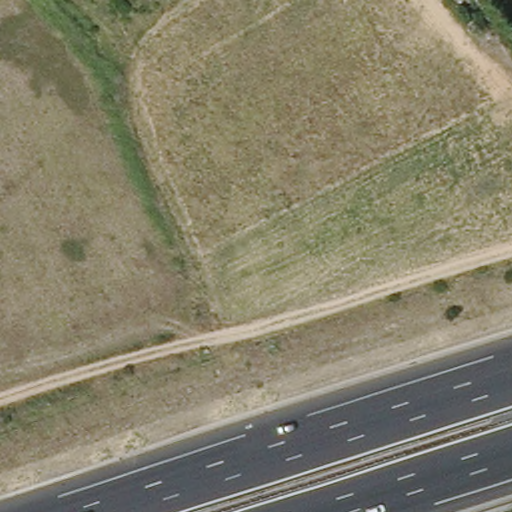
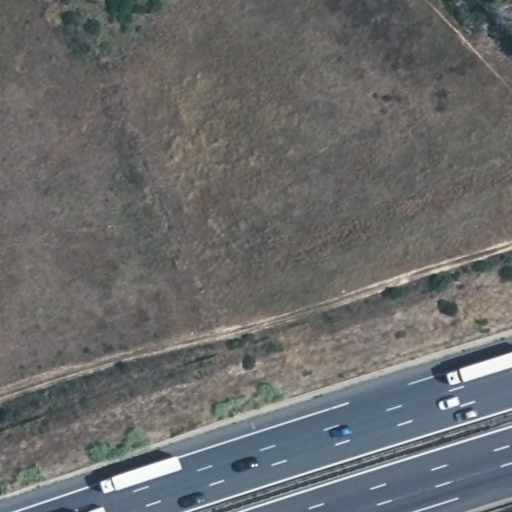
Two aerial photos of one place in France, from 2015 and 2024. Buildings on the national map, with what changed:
[]

